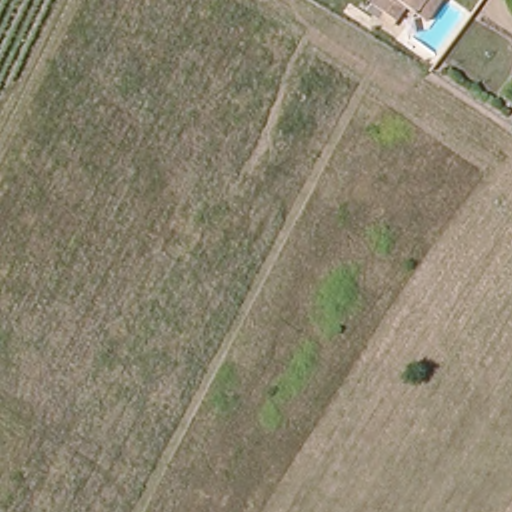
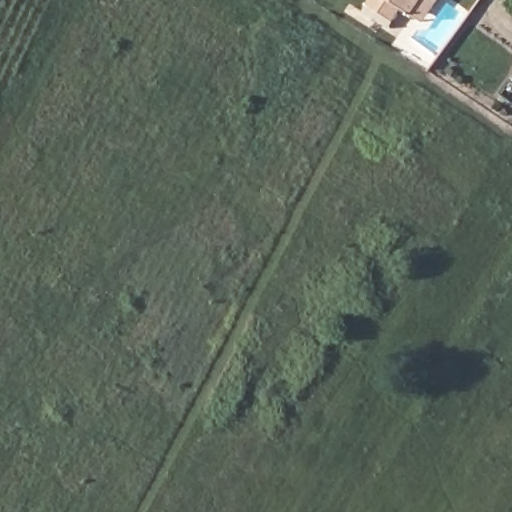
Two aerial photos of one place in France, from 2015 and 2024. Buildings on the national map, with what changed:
unchanged [(415,16),(406,10),(397,22),(371,5),(375,0),(445,0),(443,1),(427,24),(415,16)]

